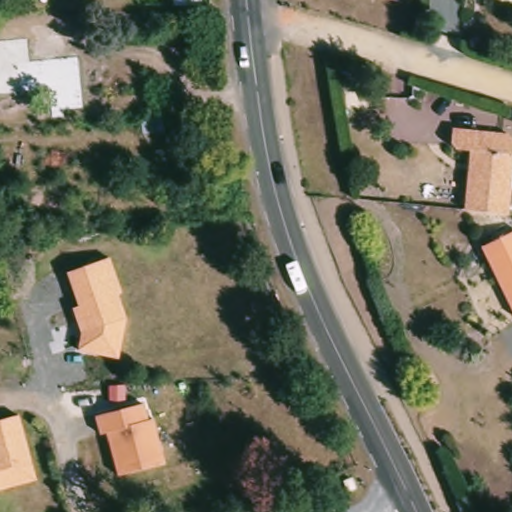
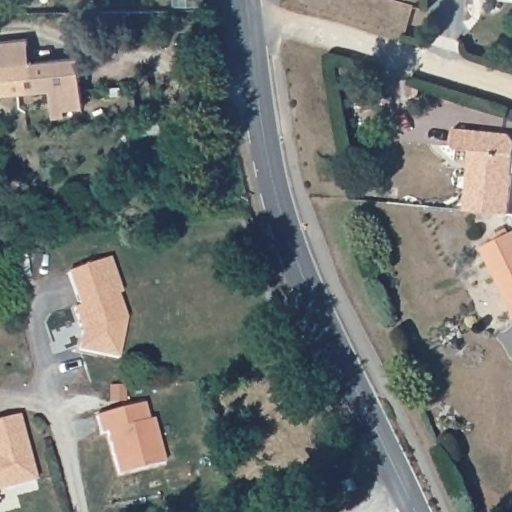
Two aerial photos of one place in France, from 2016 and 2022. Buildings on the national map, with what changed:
new [(29,61),(77,56),(82,106),(63,108),(64,115),(53,116),(50,88),(0,93),(0,40),(27,38),(29,61)]
unchanged [(463,209),(469,148),(463,148),(454,146),(446,143),(447,128),(503,133),(512,141),(512,153),(506,214),(463,209)]
unchanged [(481,247),(512,232),(512,309),(481,247)]
unchanged [(105,257),(118,289),(114,291),(124,317),(117,356),(77,349),(80,332),(71,308),(77,305),(64,272),(105,257)]
unchanged [(122,379),(123,393),(110,394),(109,380),(122,379)]
unchanged [(149,401),(166,462),(120,474),(108,432),(102,434),(97,416),(149,401)]
unchanged [(37,482),(0,492),(0,422),(19,417),(37,482)]
unchanged [(346,480),(353,479),(355,490),(348,492),(346,480)]

